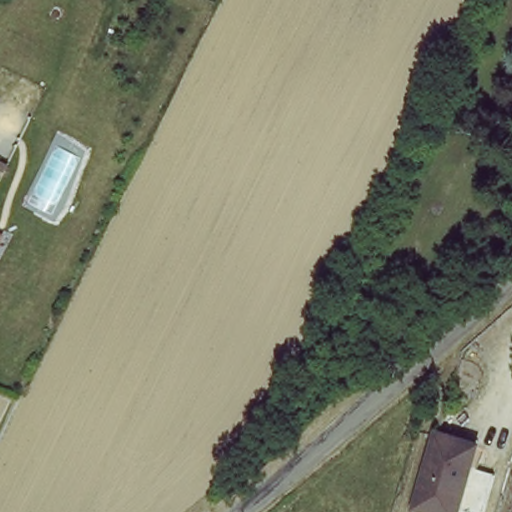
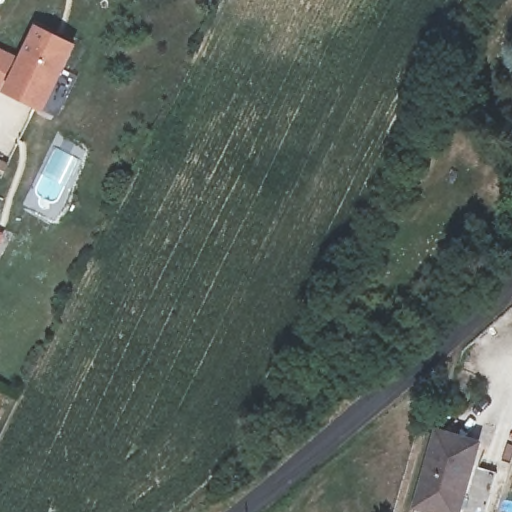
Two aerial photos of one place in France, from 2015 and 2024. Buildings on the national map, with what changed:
new [(20,58),(35,27),(76,45),(45,111),(4,92),(20,58)]
new [(20,58),(4,92),(0,90),(0,48),(20,58)]
unchanged [(18,155),(13,165),(0,157),(0,146),(18,155)]
unchanged [(6,242),(0,252),(0,239),(6,242)]
unchanged [(407,500),(431,427),(443,431),(472,440),(466,458),(490,466),(476,512),(446,512),(418,503),(407,500)]

